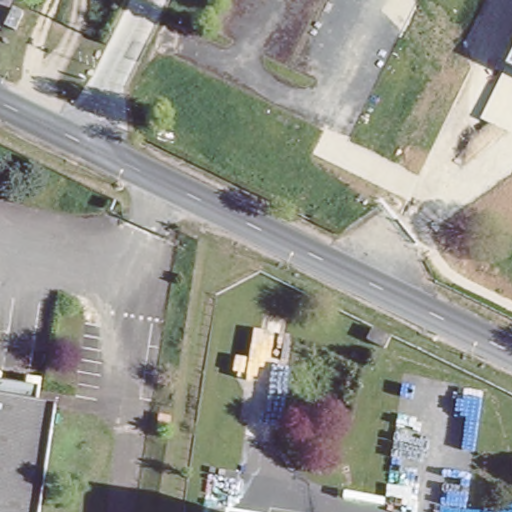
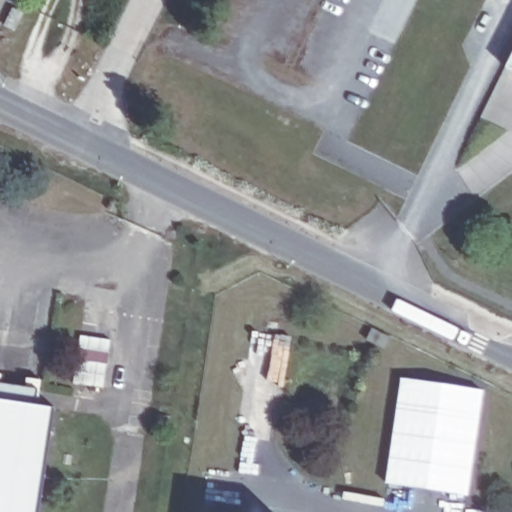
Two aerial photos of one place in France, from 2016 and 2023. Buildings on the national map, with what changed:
unchanged [(512,57),(512,66),(509,64),(512,57)]
new [(402,378),(484,390),(468,496),(384,483),(402,378)]
unchanged [(37,386),(35,403),(0,398),(0,380),(37,386)]
unchanged [(35,403),(55,406),(39,512),(0,512),(0,398),(35,403)]
unchanged [(164,422),(152,421),(153,409),(166,410),(164,422)]

